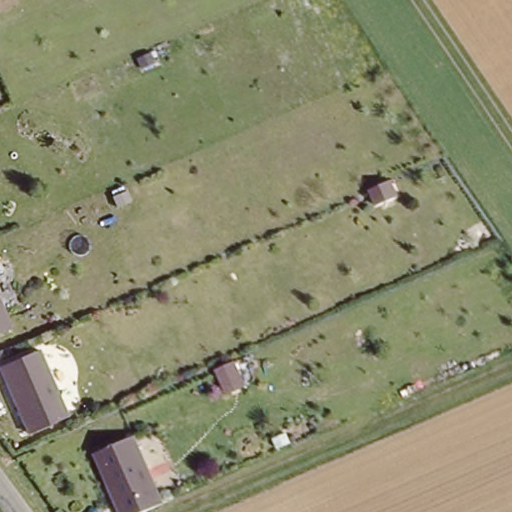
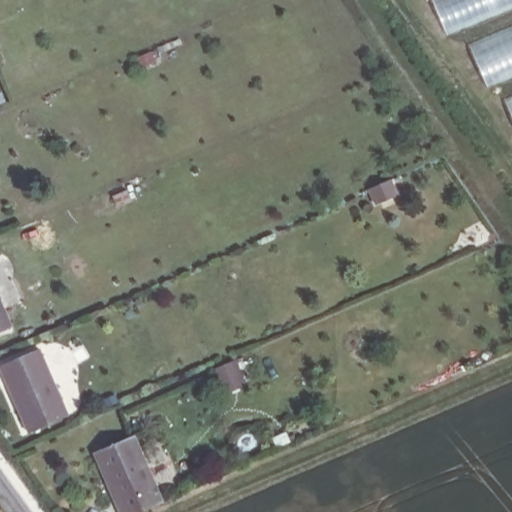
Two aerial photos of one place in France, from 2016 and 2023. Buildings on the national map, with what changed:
new [(512,0),(512,7),(447,35),(432,0),(512,0)]
new [(512,36),(512,76),(488,86),(473,52),(512,36)]
new [(512,105),(512,116),(508,107),(512,105)]
unchanged [(15,325),(0,331),(0,291),(15,325)]
unchanged [(40,350),(69,417),(29,435),(0,369),(0,367),(40,350)]
unchanged [(133,440),(163,506),(149,512),(117,512),(93,457),(133,440)]

